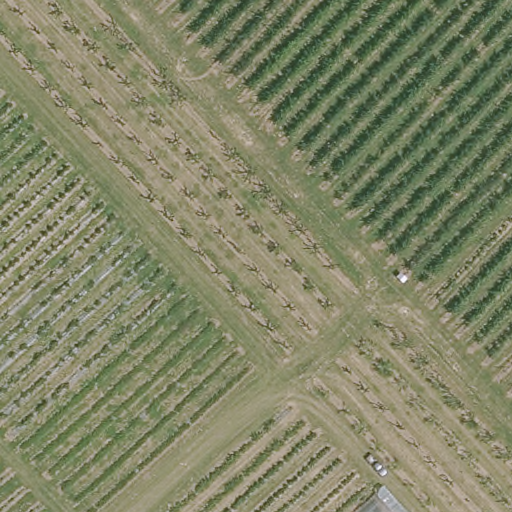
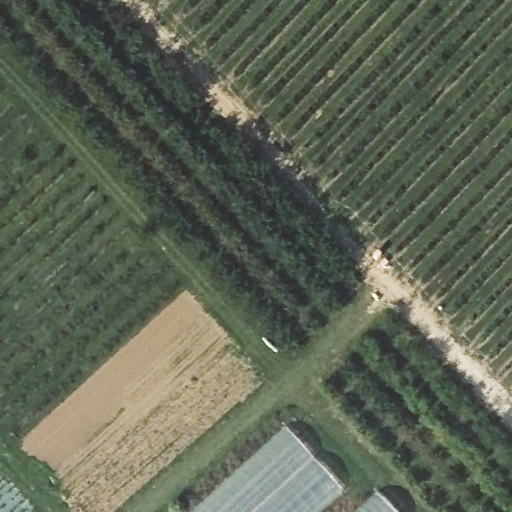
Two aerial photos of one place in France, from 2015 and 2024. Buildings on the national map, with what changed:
new [(322,512),(197,512),(285,430),(342,494),(322,512)]
unchanged [(360,512),(385,488),(407,512),(360,512)]

